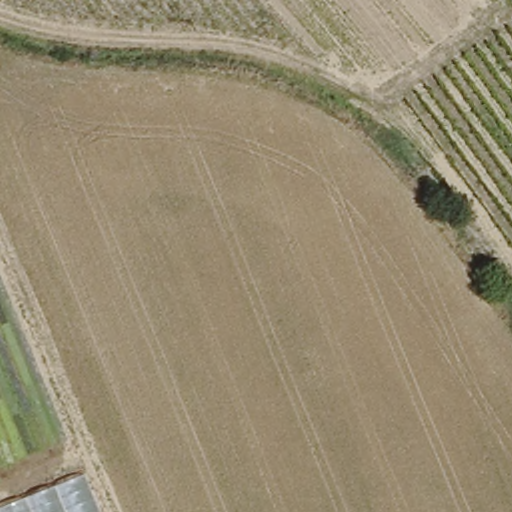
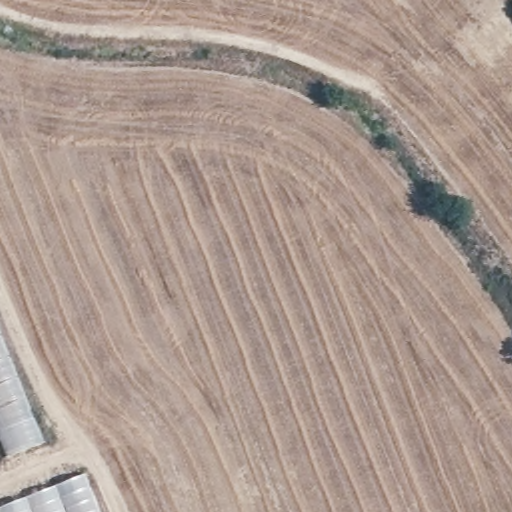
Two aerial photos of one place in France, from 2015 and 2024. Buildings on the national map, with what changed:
new [(0,462),(0,345),(41,445),(0,462)]
unchanged [(98,512),(0,512),(0,510),(84,477),(98,512)]

